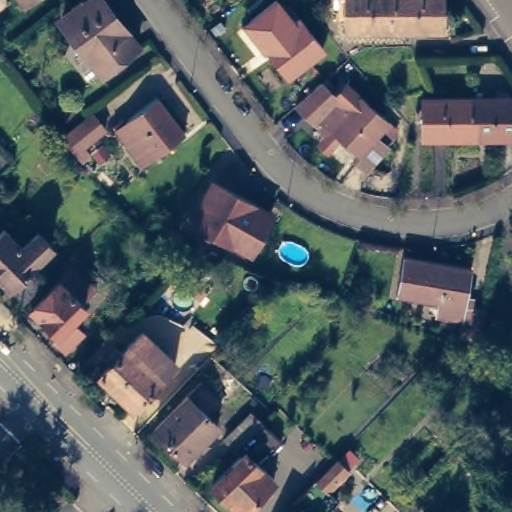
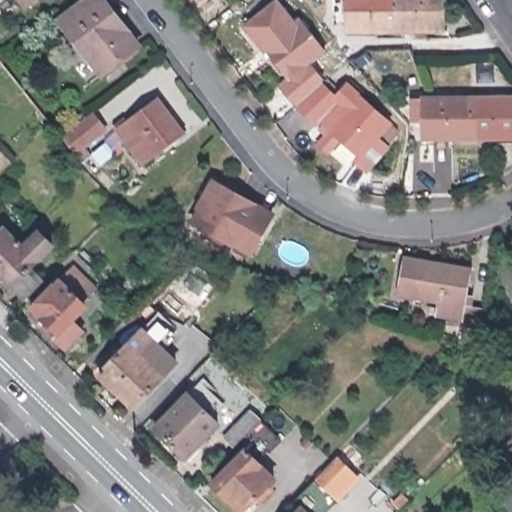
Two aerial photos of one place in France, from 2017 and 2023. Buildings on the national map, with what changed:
unchanged [(26,3),(23,0),(29,0),(26,3)]
unchanged [(91,54),(64,18),(86,0),(107,0),(127,27),(139,42),(113,62),(103,69),(91,54)]
unchanged [(347,31),(346,0),(445,0),(445,30),(402,30),(396,30),(347,31)]
unchanged [(290,74),(257,33),(271,22),(278,33),(301,15),(326,46),(290,74)]
unchanged [(320,144),(325,139),(332,131),(321,121),(318,124),(297,105),(321,85),(339,102),(349,111),(362,96),(391,123),(401,132),(387,146),(382,152),(372,143),(361,156),(342,139),(334,147),(330,152),(320,144)]
unchanged [(418,133),(417,94),(467,94),(467,96),(467,114),(474,113),(474,131),(474,133),(418,133)]
unchanged [(474,133),(474,131),(474,113),(467,114),(467,96),(467,94),(512,94),(512,132),(474,133)]
unchanged [(159,98),(186,134),(154,158),(144,166),(134,152),(145,145),(127,121),(159,98)]
unchanged [(87,147),(92,156),(84,164),(63,139),(95,115),(107,133),(87,147)]
unchanged [(234,245),(194,223),(217,183),(256,205),(274,215),(264,232),(252,255),(234,245)]
unchanged [(34,228),(50,242),(26,265),(39,278),(19,298),(0,278),(0,225),(18,243),(34,228)]
unchanged [(478,344),(460,338),(464,320),(438,316),(441,303),(398,295),(405,257),(472,268),(466,305),(488,309),(482,345),(478,344)]
unchanged [(84,300),(87,302),(72,316),(85,329),(66,347),(55,334),(57,331),(43,316),(38,321),(32,315),(36,310),(32,306),(61,278),(72,265),(82,275),(96,288),(84,300)]
unchanged [(119,392),(115,396),(109,391),(113,386),(99,372),(110,360),(106,356),(117,343),(122,348),(142,326),(176,361),(132,406),(119,392)]
unchanged [(506,348),(512,329),(512,350),(506,348)]
unchanged [(149,426),(196,377),(216,399),(203,412),(213,421),(199,435),(203,440),(197,446),(194,442),(180,456),(149,426)]
unchanged [(262,498),(257,493),(239,512),(210,482),(241,452),(234,444),(225,435),(249,409),(259,419),(279,438),(269,451),(266,449),(255,459),(274,477),(266,484),(271,489),(262,498)]
unchanged [(299,512),(302,509),(296,500),(321,476),(322,478),(352,446),(362,456),(331,488),(341,497),(341,498),(326,512),(299,512)]

